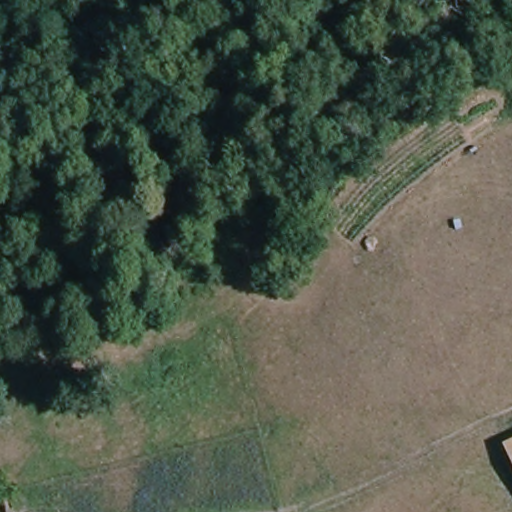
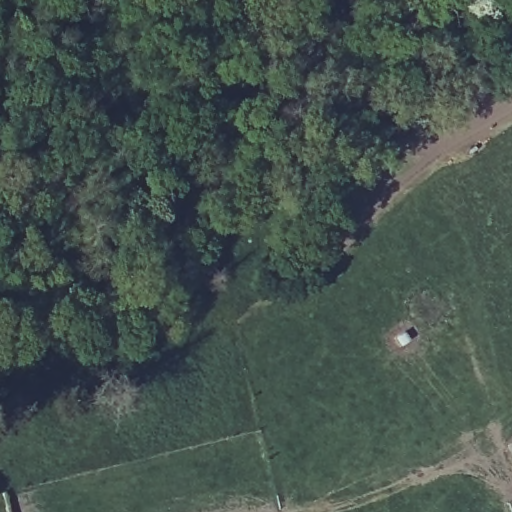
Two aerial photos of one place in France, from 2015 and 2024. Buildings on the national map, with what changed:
unchanged [(504,445),(512,442),(512,463),(504,445)]

